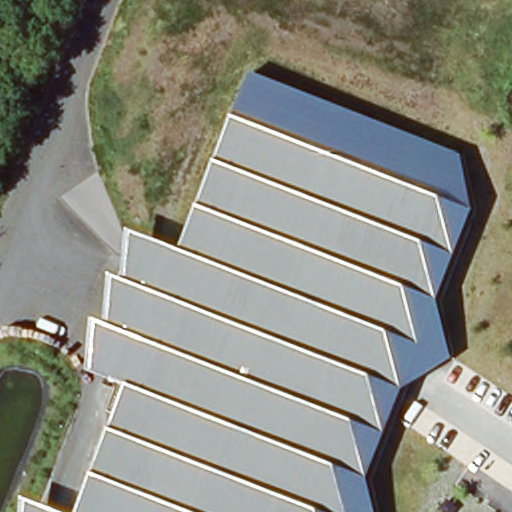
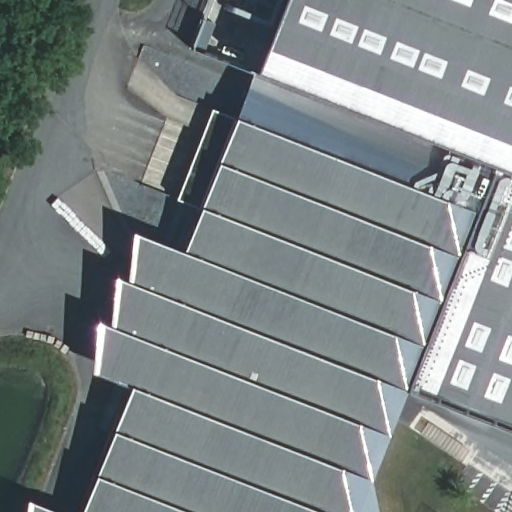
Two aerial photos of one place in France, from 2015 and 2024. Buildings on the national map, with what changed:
new [(283,0),(512,0),(512,173),(465,155),(254,74),(283,0)]
unchanged [(454,363),(409,393),(373,478),(381,512),(81,512),(130,388),(93,371),(97,324),(111,326),(115,276),(130,281),(131,232),(184,253),(237,120),(254,74),(465,155),(478,207),(443,292),(454,363)]
new [(201,210),(177,199),(213,109),(237,120),(201,210)]
new [(454,363),(443,292),(478,207),(465,155),(512,173),(512,425),(418,387),(454,363)]
unchanged [(61,512),(29,512),(29,500),(61,512)]

